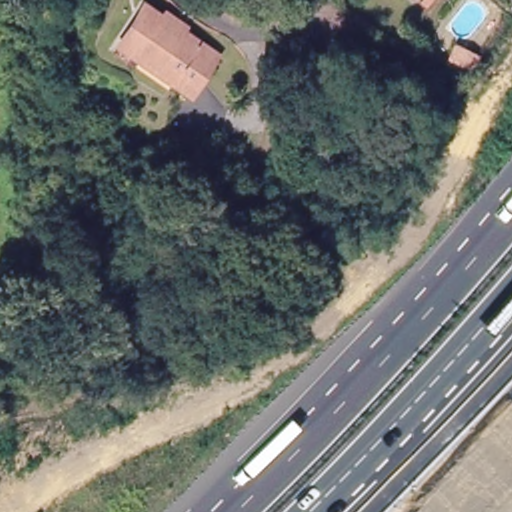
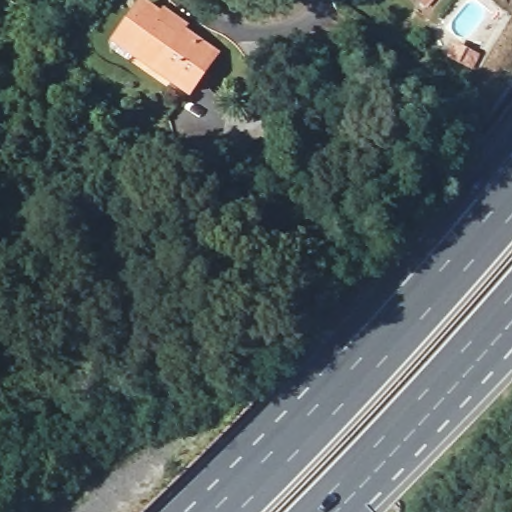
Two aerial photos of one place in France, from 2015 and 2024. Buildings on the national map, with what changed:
unchanged [(145,0),(219,54),(186,105),(106,50),(137,0),(145,0)]

